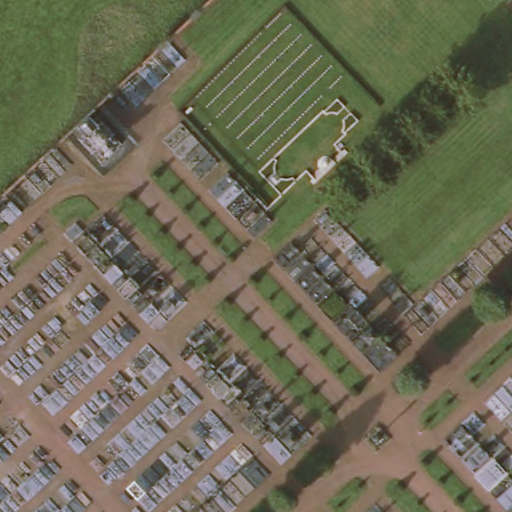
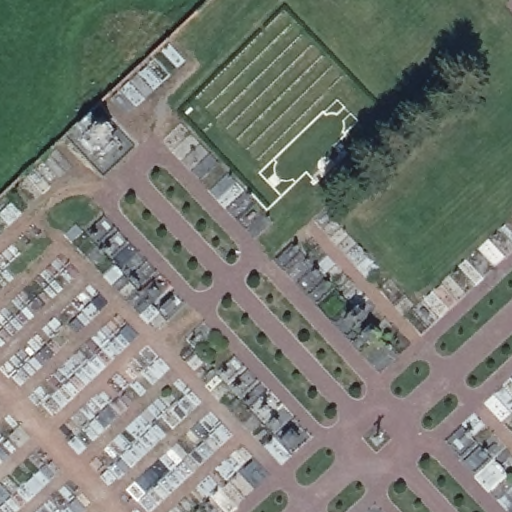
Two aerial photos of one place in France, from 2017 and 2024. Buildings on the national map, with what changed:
unchanged [(80,138),(102,118),(127,146),(106,167),(80,138)]

